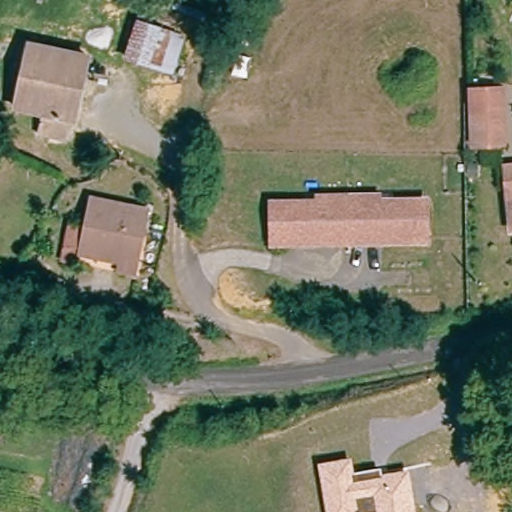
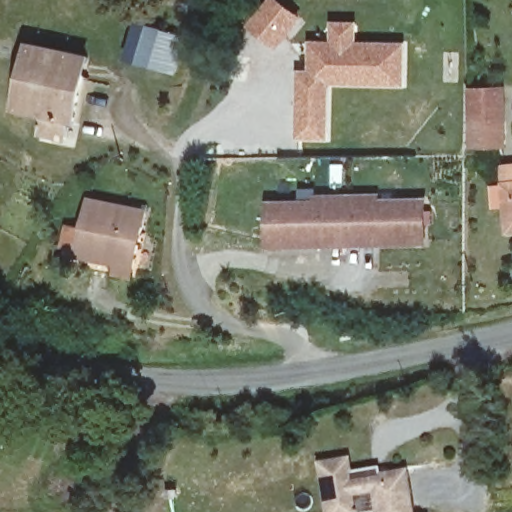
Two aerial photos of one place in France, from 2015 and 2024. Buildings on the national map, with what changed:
new [(257,0),(268,0),(285,13),(272,29),(262,41),(239,22),(249,10),(257,0)]
unchanged [(75,54),(87,57),(72,122),(65,122),(57,141),(33,138),(35,120),(10,113),(25,44),(32,23),(57,25),(60,5),(85,6),(75,54)]
unchanged [(176,77),(122,59),(131,18),(186,33),(176,77)]
new [(300,72),(311,72),(312,42),(334,42),(335,22),(355,23),(354,43),(403,45),(402,82),(327,81),(326,136),(298,136),(300,79),(300,72)]
unchanged [(473,133),(472,84),(504,83),(506,140),(473,141),(473,133)]
unchanged [(508,175),(509,151),(512,151),(512,223),(510,223),(510,216),(508,175)]
unchanged [(112,278),(114,267),(81,260),(58,255),(63,221),(79,223),(84,195),(145,209),(135,284),(112,278)]
unchanged [(333,238),(328,244),(275,245),(273,205),(320,204),(320,198),(349,197),(351,238),(333,238)]
unchanged [(428,241),(374,243),(368,237),(351,238),(349,197),(379,197),(379,202),(426,201),(428,241)]
unchanged [(382,475),(408,470),(416,512),(325,512),(317,463),(351,458),(353,472),(381,468),(382,475)]

